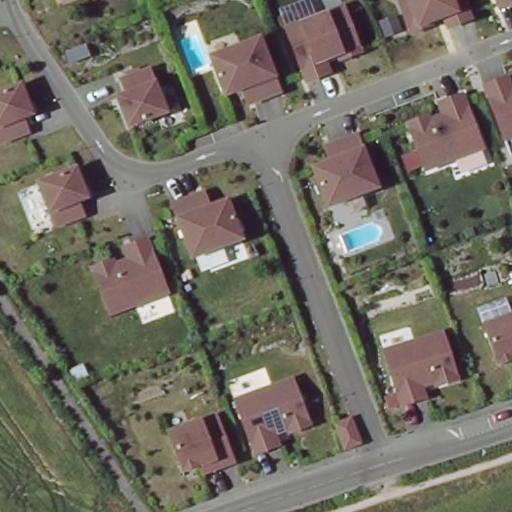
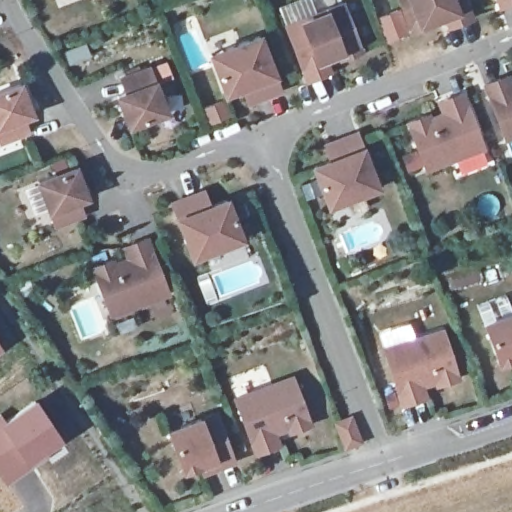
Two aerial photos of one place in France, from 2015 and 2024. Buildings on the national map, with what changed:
unchanged [(430,14),(431,19),(411,26),(401,0),(466,0),(471,12),(456,18),(449,21),(444,9),(430,14)]
unchanged [(498,0),(512,0),(512,1),(501,6),(498,0)]
unchanged [(321,74),(306,80),(286,26),(343,4),(361,50),(340,58),(339,54),(324,59),(329,71),(321,74)]
unchanged [(247,87),(230,93),(218,62),(216,55),(231,49),(265,36),(285,90),(259,100),(253,102),(247,87)]
unchanged [(149,67),(166,111),(128,125),(117,96),(126,92),(120,78),(149,67)]
unchanged [(507,76),(511,87),(512,87),(512,135),(505,138),(484,84),(500,78),(507,76)]
unchanged [(31,113),(22,117),(28,131),(0,141),(0,91),(20,84),(31,113)]
unchanged [(430,119),(444,113),(440,101),(447,99),(462,92),(482,147),(425,168),(408,122),(428,114),(430,119)]
unchanged [(326,198),(314,167),(330,160),(325,145),(331,143),(356,133),(377,187),(344,199),(328,205),(326,198)]
unchanged [(86,196),(78,200),(83,214),(55,225),(38,182),(75,167),(86,196)]
unchanged [(204,191),(210,206),(226,199),(238,231),(223,237),(226,244),(192,256),(171,202),(198,192),(204,191)]
unchanged [(114,263),(128,258),(124,246),(131,244),(146,237),(167,292),(110,313),(92,267),(113,259),(114,263)]
unchanged [(499,363),(485,323),(512,314),(512,358),(499,363)]
unchanged [(417,398),(402,403),(384,348),(443,330),(458,377),(437,384),(435,380),(421,385),(424,397),(417,398)]
new [(0,348),(0,342),(3,346),(0,348)]
unchanged [(271,447),(255,452),(235,398),(292,377),(310,423),(289,431),(288,427),(273,432),(278,444),(271,447)]
new [(35,398),(61,437),(44,450),(48,455),(5,482),(0,476),(0,411),(5,418),(35,398)]
unchanged [(200,464),(183,470),(168,431),(216,413),(233,461),(213,468),(203,472),(200,464)]
unchanged [(341,422),(351,417),(360,441),(346,446),(336,423),(341,422)]

